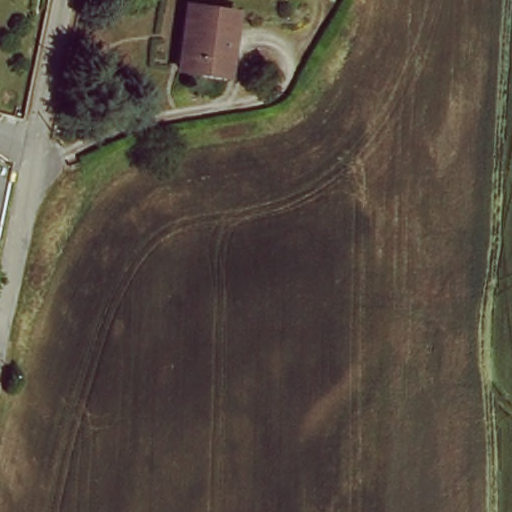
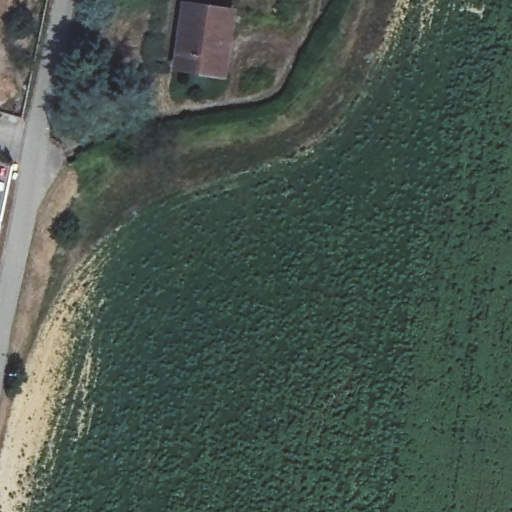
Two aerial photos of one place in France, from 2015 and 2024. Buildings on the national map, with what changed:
unchanged [(226,7),(216,71),(173,65),(184,0),(226,7)]

